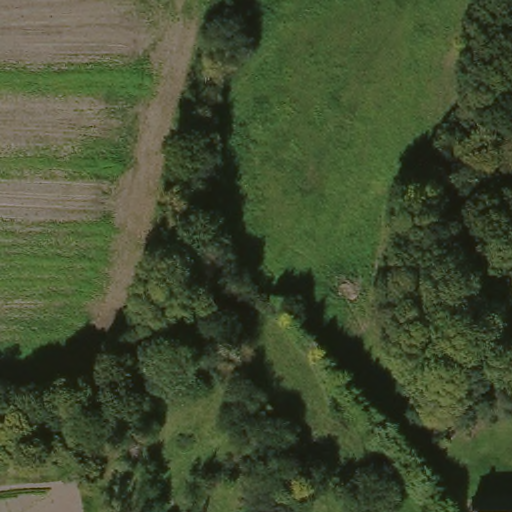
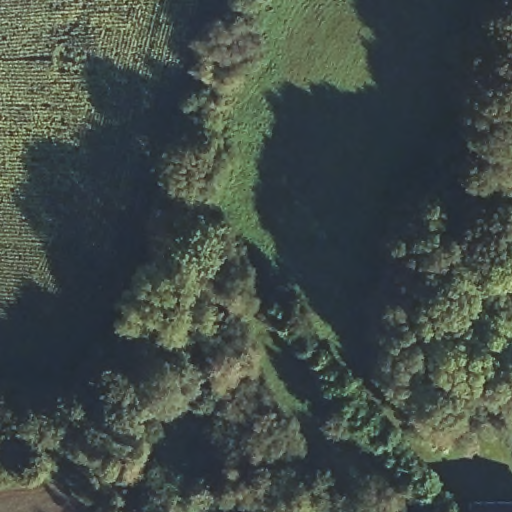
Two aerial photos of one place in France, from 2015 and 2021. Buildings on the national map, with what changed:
unchanged [(512,508),(512,512),(468,512),(468,509),(512,508)]

